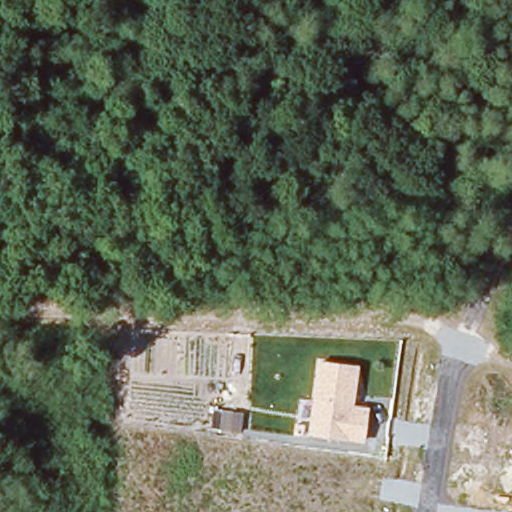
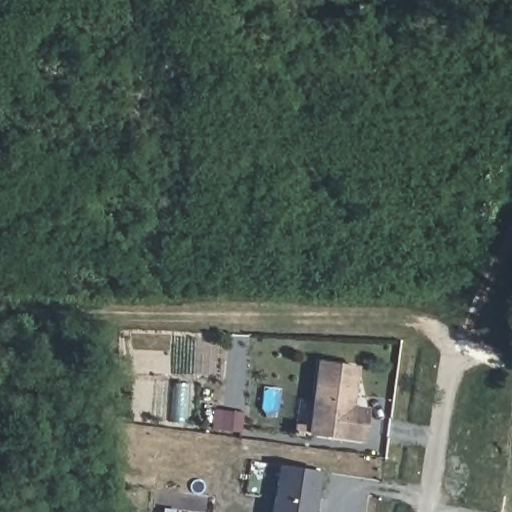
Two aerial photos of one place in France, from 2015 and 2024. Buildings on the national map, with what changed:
unchanged [(354,406),(370,409),(365,440),(306,433),(316,360),(358,366),(354,406)]
new [(318,472),(313,512),(272,512),(277,466),(318,472)]

